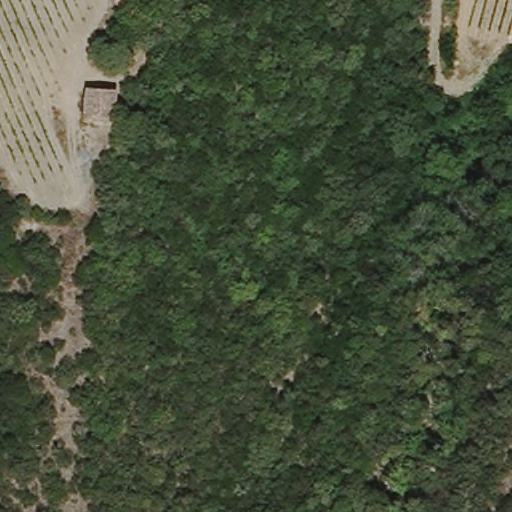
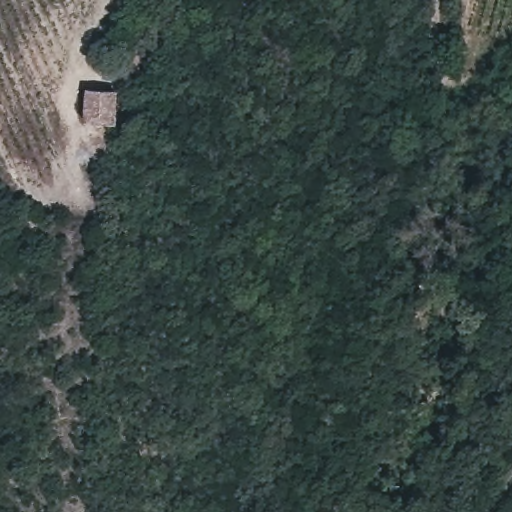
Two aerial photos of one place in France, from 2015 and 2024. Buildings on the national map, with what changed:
unchanged [(112,91),(112,131),(81,131),(81,91),(112,91)]

